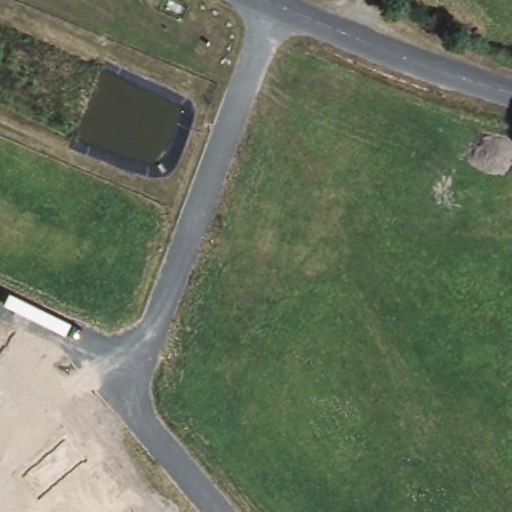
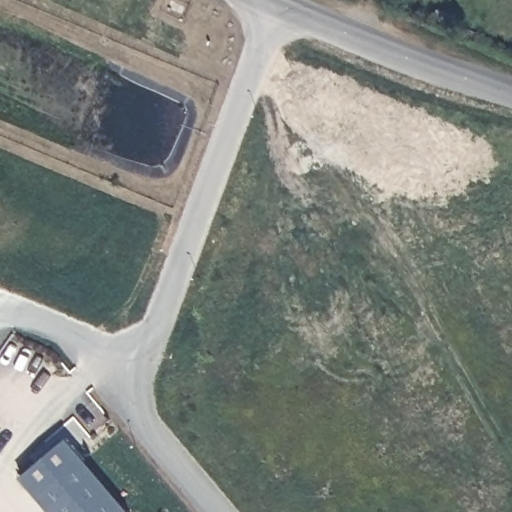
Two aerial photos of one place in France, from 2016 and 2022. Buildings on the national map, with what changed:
new [(57,426),(120,499),(105,512),(52,512),(11,465),(57,426)]

